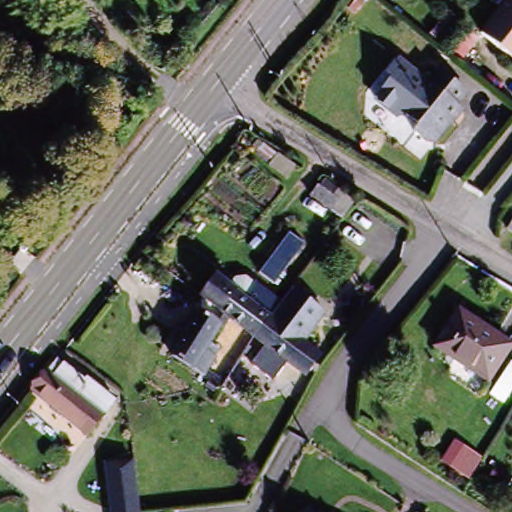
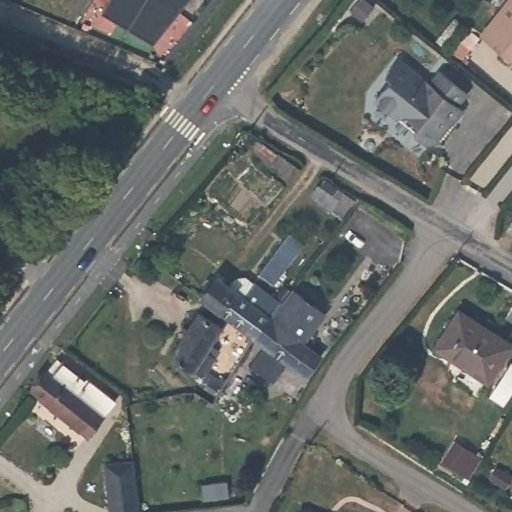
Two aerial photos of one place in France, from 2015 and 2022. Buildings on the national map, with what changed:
new [(113,0),(190,0),(157,41),(107,11),(113,0)]
unchanged [(482,37),(511,0),(512,0),(512,61),(482,37)]
unchanged [(465,95),(455,109),(457,111),(447,123),(450,125),(436,145),(425,145),(414,136),(420,128),(400,113),(422,83),(427,87),(439,74),(465,95)]
unchanged [(292,149),(285,161),(267,150),(275,137),(292,149)]
unchanged [(320,167),(352,187),(352,188),(347,195),(339,205),(307,184),(314,174),(315,175),(320,167)]
unchanged [(294,232),(309,243),(279,282),(264,271),(294,232)]
unchanged [(235,289),(241,281),(250,279),(259,285),(285,305),(274,320),(259,340),(208,301),(206,300),(222,280),(235,289)]
unchanged [(330,316),(308,345),(274,320),(285,305),(287,301),(296,291),(330,316)]
unchanged [(208,390),(201,384),(205,379),(167,353),(195,310),(216,324),(205,341),(212,347),(207,355),(209,357),(202,367),(216,377),(212,383),(208,390)]
unchanged [(465,310),(512,341),(512,351),(495,377),(464,356),(462,359),(441,346),(465,310)]
unchanged [(274,320),(308,345),(326,358),(311,377),(259,340),(274,320)]
unchanged [(63,356),(90,377),(92,375),(121,399),(94,434),(37,389),(63,356)]
unchanged [(452,439),(478,454),(471,473),(442,458),(452,439)]
unchanged [(137,463),(142,512),(116,512),(111,466),(137,463)]
unchanged [(305,512),(306,510),(310,512),(305,512)]

